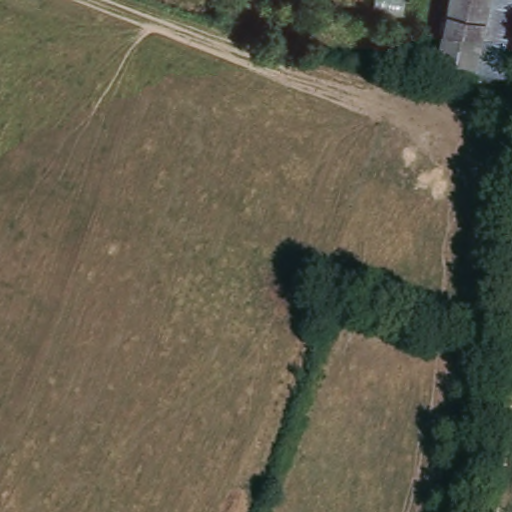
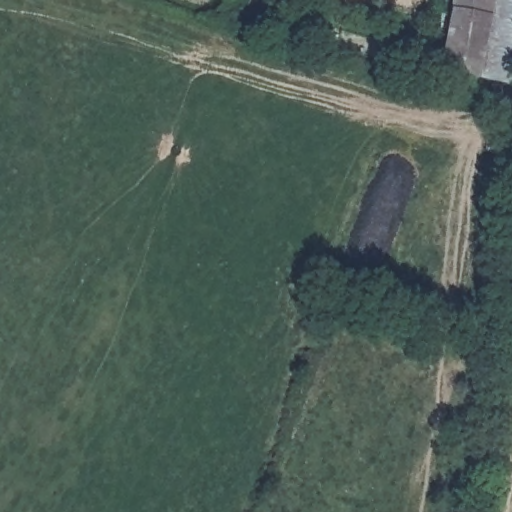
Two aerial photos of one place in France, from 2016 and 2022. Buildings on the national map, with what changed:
unchanged [(500,0),(489,82),(432,74),(448,0),(500,0)]
unchanged [(512,0),(512,86),(489,82),(500,0),(512,0)]

